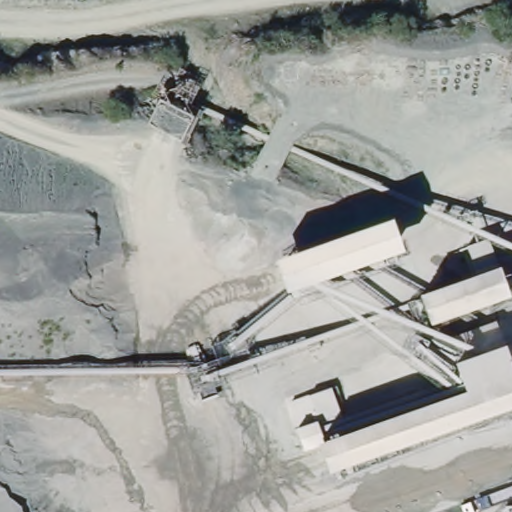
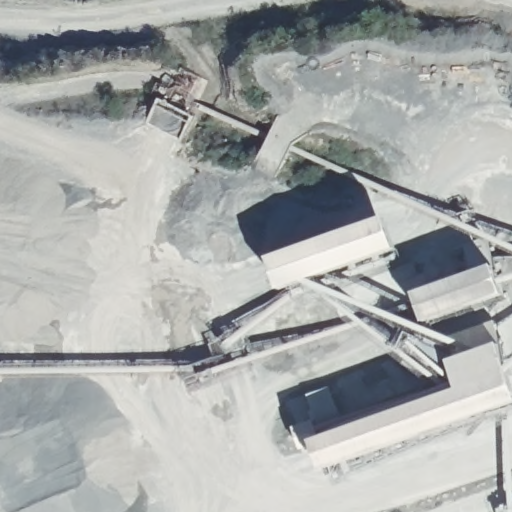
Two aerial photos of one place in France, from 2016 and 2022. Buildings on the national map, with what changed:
unchanged [(404,261),(291,297),(277,261),(395,225),(404,261)]
unchanged [(421,293),(475,278),(465,244),(493,235),(512,295),(431,326),(421,293)]
unchanged [(467,389),(457,360),(506,341),(512,359),(512,403),(335,463),(327,437),(467,389)]
unchanged [(333,382),(347,418),(325,427),(312,391),(333,382)]

